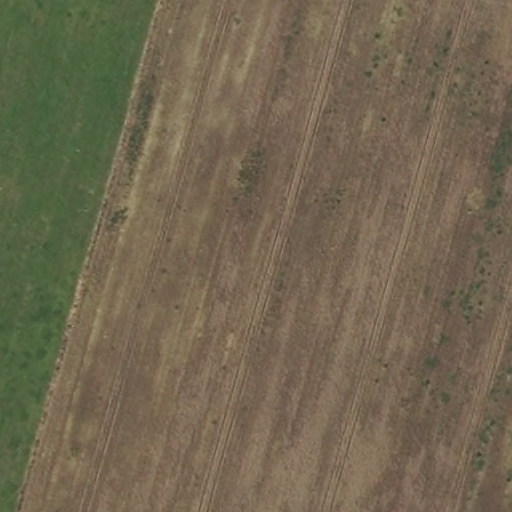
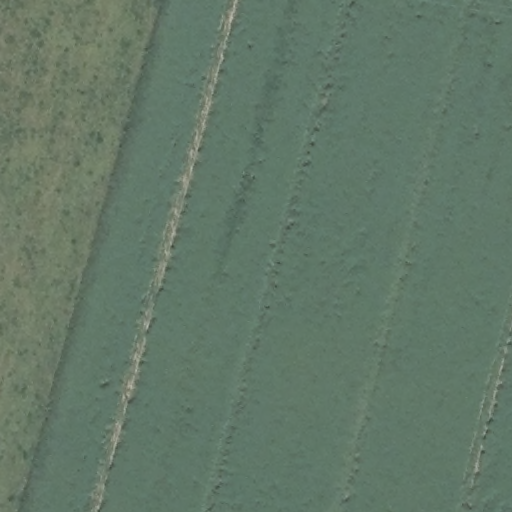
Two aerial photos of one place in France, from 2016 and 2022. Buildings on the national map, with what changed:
[]

